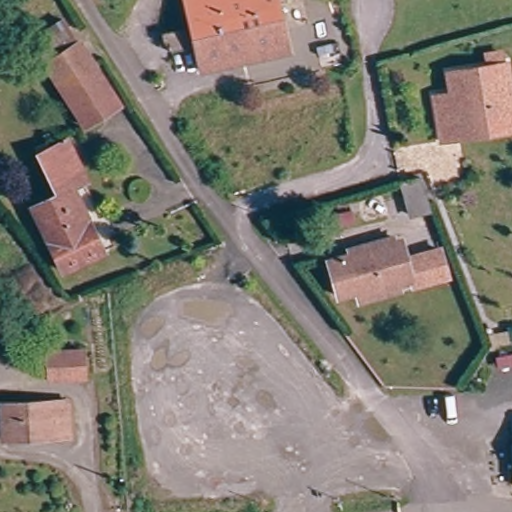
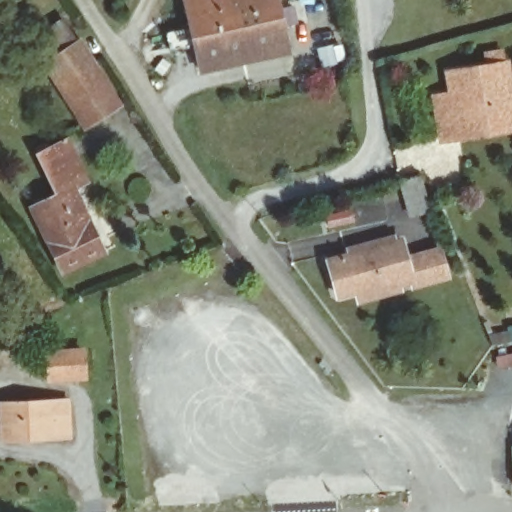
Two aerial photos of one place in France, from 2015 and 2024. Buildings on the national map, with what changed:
unchanged [(189,25),(184,0),(276,0),(287,50),(199,69),(194,45),(169,50),(165,30),(189,25)]
unchanged [(112,96),(77,120),(34,54),(70,34),(112,96)]
unchanged [(446,143),(438,99),(455,96),(451,74),(510,64),(512,72),(512,132),(465,140),(446,143)]
unchanged [(54,195),(35,151),(67,135),(89,180),(74,190),(107,253),(63,275),(29,208),(54,195)]
unchanged [(413,177),(416,184),(423,206),(424,208),(413,212),(405,214),(400,200),(395,183),(395,182),(401,180),(404,179),(413,177)]
unchanged [(356,292),(336,298),(332,288),(328,290),(324,277),(328,276),(324,263),(347,255),(345,250),(387,236),(389,242),(397,240),(402,257),(428,249),(434,247),(443,274),(439,275),(410,284),(408,278),(393,283),(395,289),(359,300),(356,292)]
unchanged [(83,380),(54,380),(53,352),(82,351),(83,380)]
unchanged [(70,433),(10,436),(9,406),(68,403),(70,433)]

